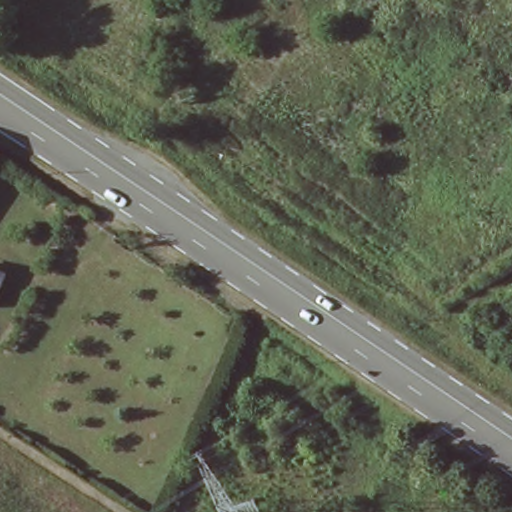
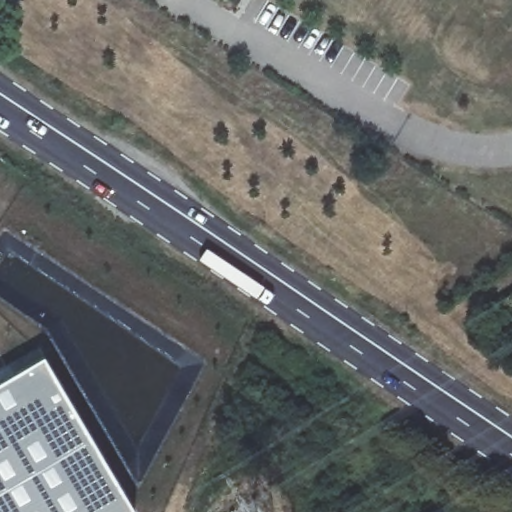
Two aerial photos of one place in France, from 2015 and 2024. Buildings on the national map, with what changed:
unchanged [(0,290),(0,273),(6,275),(0,290)]
new [(43,354),(136,511),(134,512),(0,512),(0,378),(43,354)]

